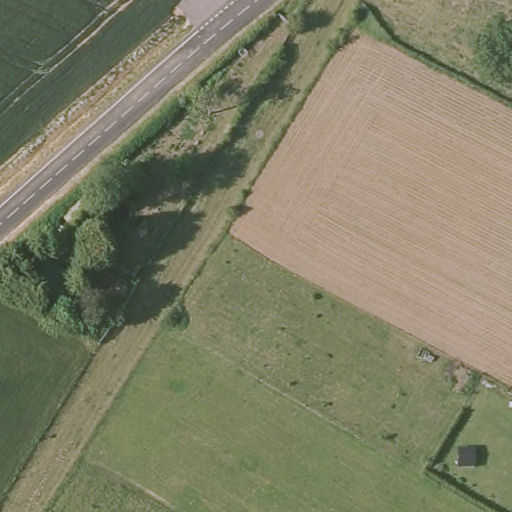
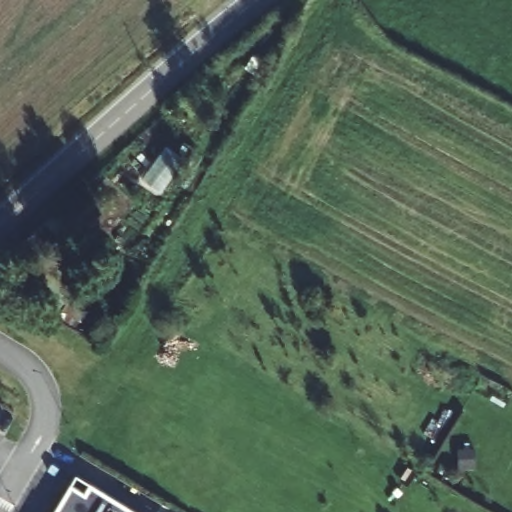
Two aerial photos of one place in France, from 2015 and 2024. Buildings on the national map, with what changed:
new [(84,489),(88,480),(141,512),(50,512),(68,480),(84,489)]

